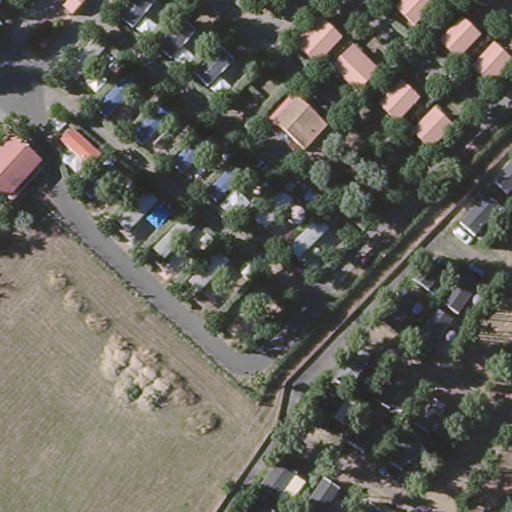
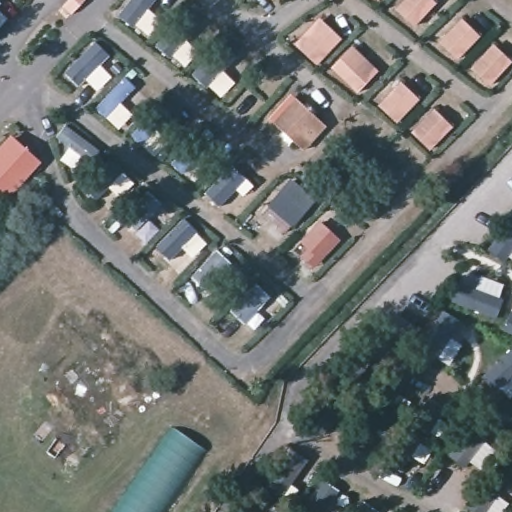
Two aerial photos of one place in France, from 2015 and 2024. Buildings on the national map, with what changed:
unchanged [(66,10),(66,9),(72,3),(72,2),(74,0),(86,0),(72,15),(66,10)]
unchanged [(298,146),(273,124),(296,98),(321,121),(326,126),(318,136),(312,142),(304,151),(298,146)]
unchanged [(19,157),(30,167),(0,201),(0,160),(10,149),(11,150),(18,142),(26,149),(19,157)]
new [(174,428),(207,450),(163,512),(117,512),(174,428)]

